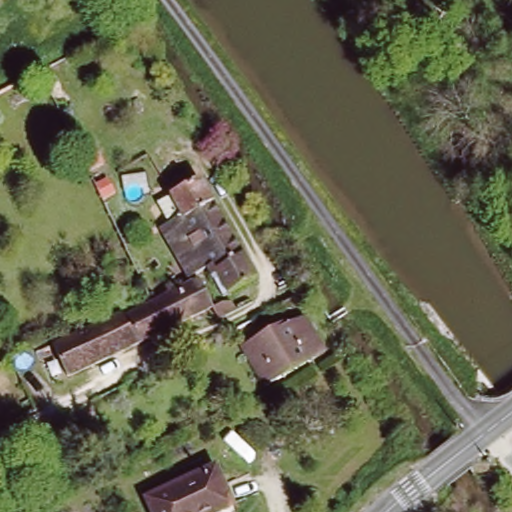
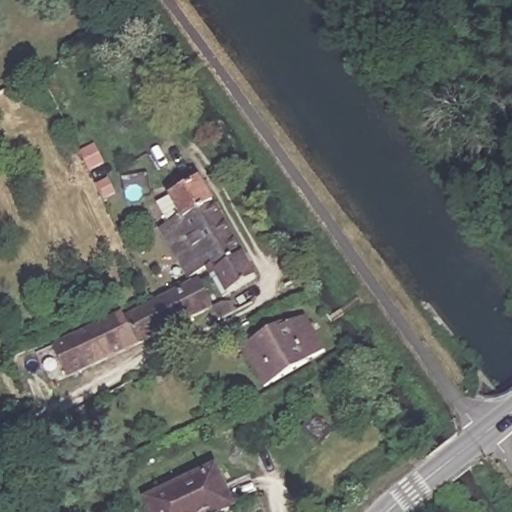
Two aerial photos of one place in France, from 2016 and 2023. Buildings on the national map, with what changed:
unchanged [(233,293),(232,292),(228,294),(211,267),(195,277),(165,228),(185,215),(172,194),(182,189),(175,179),(192,169),(199,179),(201,177),(262,275),(233,293)]
unchanged [(73,372),(60,339),(130,309),(131,313),(160,300),(209,279),(221,309),(73,372)]
unchanged [(269,386),(245,347),(288,323),(291,328),(309,318),(329,352),(269,386)]
unchanged [(237,505),(220,512),(158,512),(152,499),(219,467),(237,505)]

